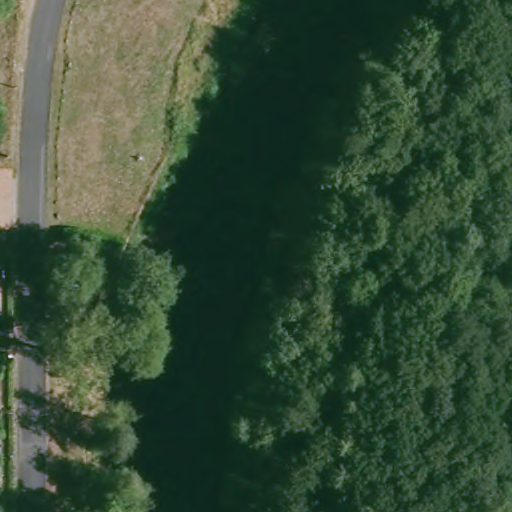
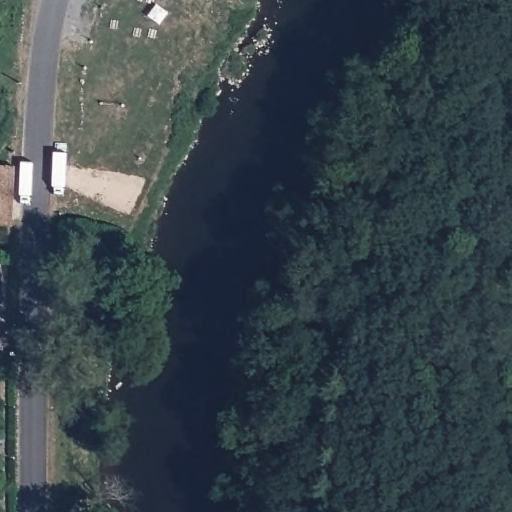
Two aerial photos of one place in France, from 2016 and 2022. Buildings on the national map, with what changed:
unchanged [(0,233),(0,159),(11,161),(2,233),(0,233)]
unchanged [(115,183),(115,227),(63,230),(63,183),(115,183)]

